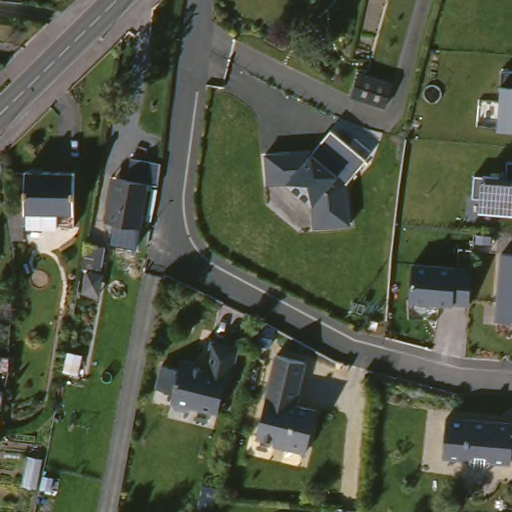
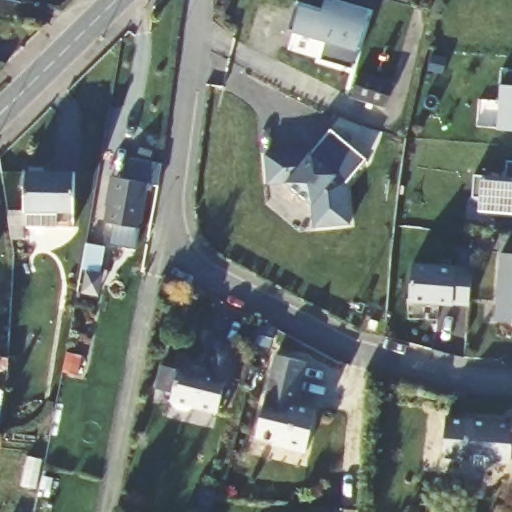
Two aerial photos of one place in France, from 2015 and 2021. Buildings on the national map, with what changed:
unchanged [(0,3),(0,0),(24,0),(22,7),(0,3)]
new [(321,58),(326,41),(289,29),(295,6),(320,14),(324,0),(367,13),(350,69),(321,58)]
unchanged [(391,82),(384,106),(351,95),(360,65),(366,67),(365,74),(391,82)]
unchanged [(512,76),(512,132),(497,131),(501,75),(512,76)]
unchanged [(311,203),(288,181),(268,181),(267,151),(291,151),(291,154),(310,153),(333,129),(368,162),(347,184),(348,226),(312,227),(311,203)]
unchanged [(78,162),(77,214),(62,213),(61,218),(29,215),(27,229),(16,228),(10,199),(28,200),(29,161),(78,162)]
unchanged [(125,187),(129,165),(159,171),(157,193),(145,191),(137,236),(101,229),(104,212),(108,213),(112,185),(125,187)]
unchanged [(472,197),(473,178),(505,179),(505,167),(512,167),(512,213),(476,212),(477,198),(472,197)]
unchanged [(103,250),(99,275),(80,271),(84,247),(103,250)]
unchanged [(512,256),(512,323),(494,321),(500,254),(512,256)]
unchanged [(410,267),(457,270),(457,274),(470,276),(469,307),(454,305),(408,305),(410,267)]
unchanged [(232,343),(224,379),(220,378),(213,410),(189,405),(184,409),(170,406),(166,400),(168,391),(151,388),(156,364),(173,368),(175,358),(190,361),(189,363),(198,365),(204,337),(232,343)]
unchanged [(9,356),(7,369),(0,369),(0,356),(9,356)]
unchanged [(309,366),(302,398),(296,401),(294,408),(320,414),(309,457),(286,451),(282,446),(260,440),(280,359),(309,366)]
unchanged [(3,392),(0,415),(0,391),(3,392)]
unchanged [(512,458),(510,466),(490,462),(484,466),(474,465),(470,458),(443,454),(450,415),(512,427),(512,458)]
unchanged [(26,455),(40,458),(34,486),(20,484),(26,455)]

